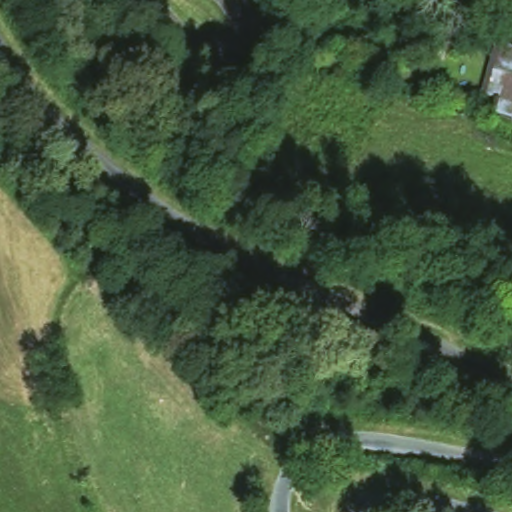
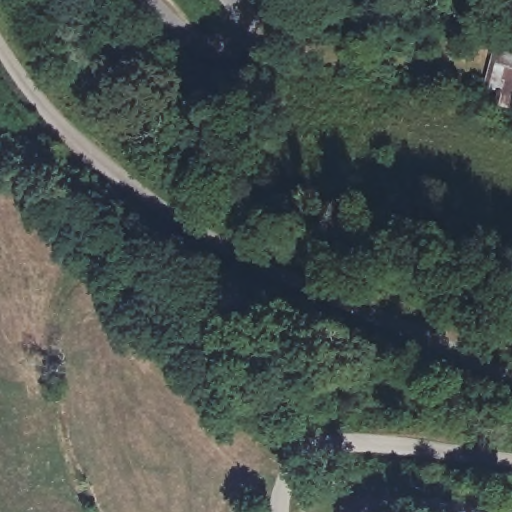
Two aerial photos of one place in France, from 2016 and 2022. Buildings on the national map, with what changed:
unchanged [(512,44),(512,110),(500,100),(501,93),(486,88),(497,42),(512,44)]

